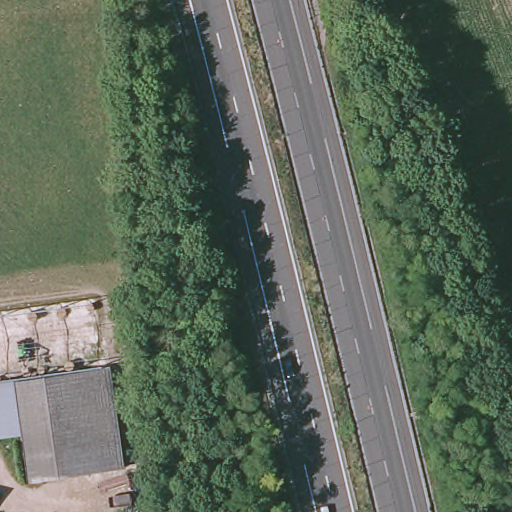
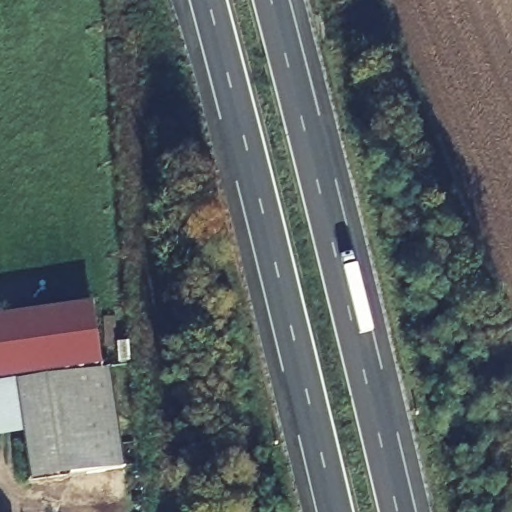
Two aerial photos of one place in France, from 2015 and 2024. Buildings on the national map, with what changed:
new [(82,300),(92,364),(0,378),(0,312),(82,300)]
unchanged [(101,365),(117,465),(22,479),(6,380),(101,365)]
unchanged [(15,433),(0,435),(0,381),(6,380),(15,433)]

